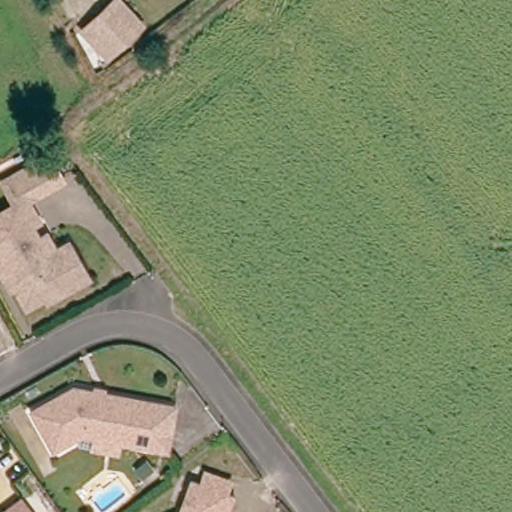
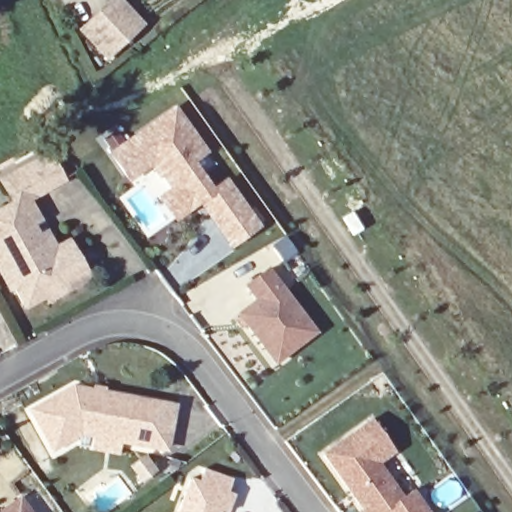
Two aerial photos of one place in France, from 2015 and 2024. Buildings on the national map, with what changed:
unchanged [(81,30),(108,11),(120,2),(142,32),(130,41),(104,60),(81,30)]
new [(209,151),(193,162),(212,187),(226,177),(261,226),(229,248),(199,205),(174,221),(156,196),(169,189),(162,178),(159,180),(150,166),(128,182),(106,152),(174,104),(209,151)]
unchanged [(46,304),(44,300),(26,309),(14,286),(20,283),(15,275),(0,271),(0,270),(0,220),(5,217),(2,214),(16,205),(4,184),(48,160),(61,183),(26,202),(38,225),(31,229),(38,242),(46,238),(54,254),(67,246),(86,282),(46,304)]
new [(235,313),(254,300),(243,285),(268,266),(318,331),(275,364),(235,313)]
unchanged [(93,443),(79,440),(81,428),(52,443),(32,406),(73,383),(174,401),(167,443),(119,435),(117,447),(93,443)]
new [(380,463),(403,495),(413,488),(429,512),(362,512),(320,453),(370,417),(395,452),(380,463)]
unchanged [(198,481),(203,468),(231,478),(226,491),(233,494),(227,512),(226,512),(214,507),(212,512),(177,512),(189,478),(198,481)]
unchanged [(34,512),(8,512),(25,500),(34,512)]

